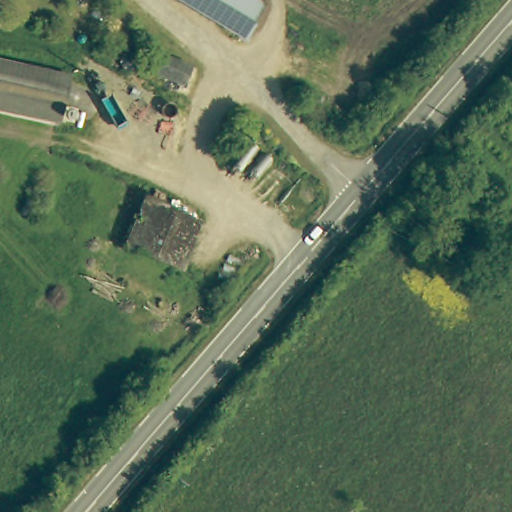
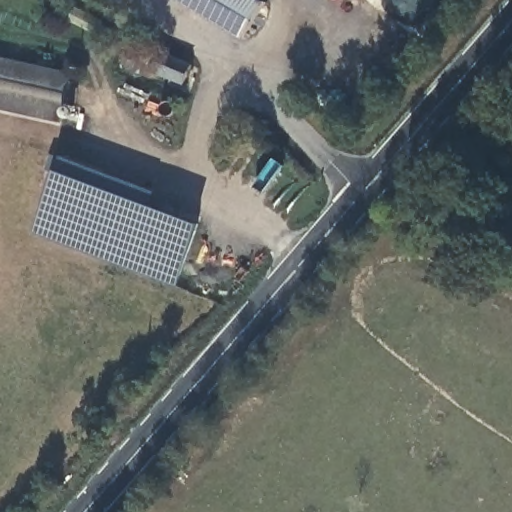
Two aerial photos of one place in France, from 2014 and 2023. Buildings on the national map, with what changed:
unchanged [(182,0),(222,0),(212,17),(182,0)]
unchanged [(265,0),(249,37),(212,17),(222,0),(265,0)]
unchanged [(71,72),(62,119),(0,106),(0,57),(71,72)]
unchanged [(150,57),(179,67),(172,86),(144,75),(150,57)]
new [(177,288),(32,233),(56,171),(61,156),(155,192),(151,207),(199,225),(177,288)]

